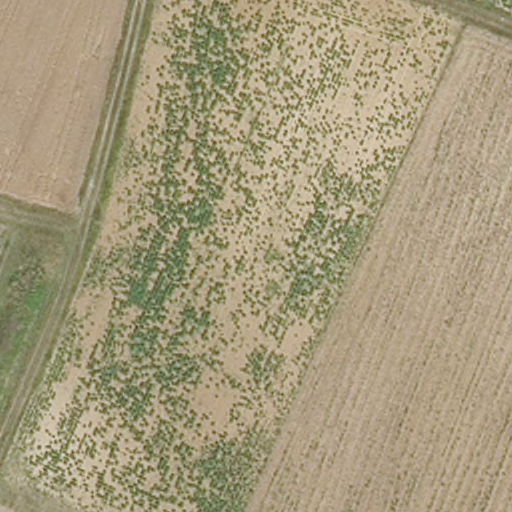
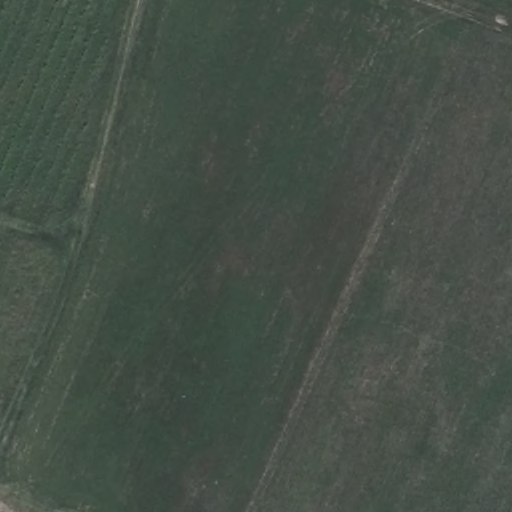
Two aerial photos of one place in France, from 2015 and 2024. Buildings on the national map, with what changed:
[]

